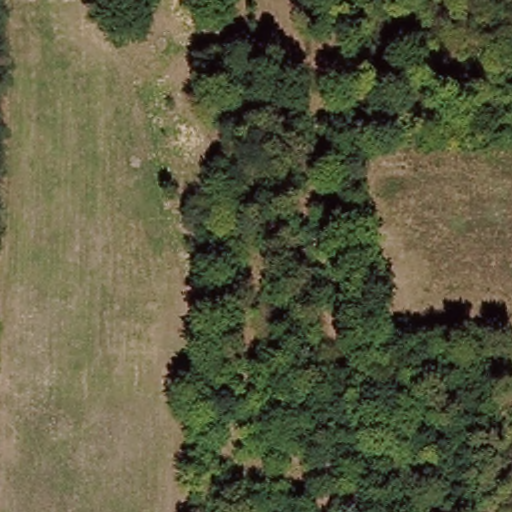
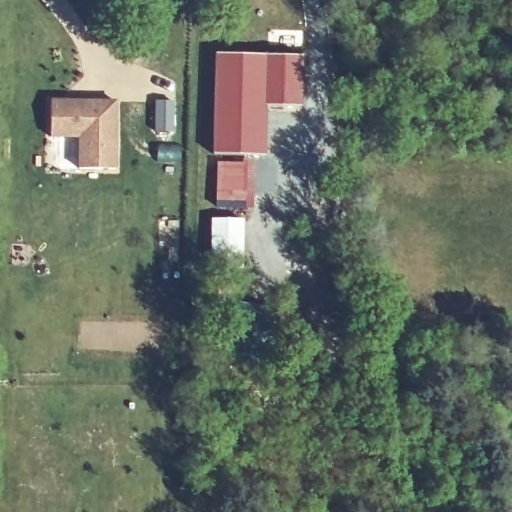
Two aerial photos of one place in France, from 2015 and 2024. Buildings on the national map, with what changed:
new [(212,154),(215,53),(304,56),(302,106),(265,105),(266,156),(212,154)]
demolished [(243,66),(240,89),(219,86),(221,64),(243,66)]
new [(115,170),(78,170),(77,138),(50,138),(51,100),(115,101),(115,170)]
new [(217,207),(217,161),(253,163),(252,207),(217,207)]
new [(243,269),(210,268),(211,219),(243,219),(243,269)]

